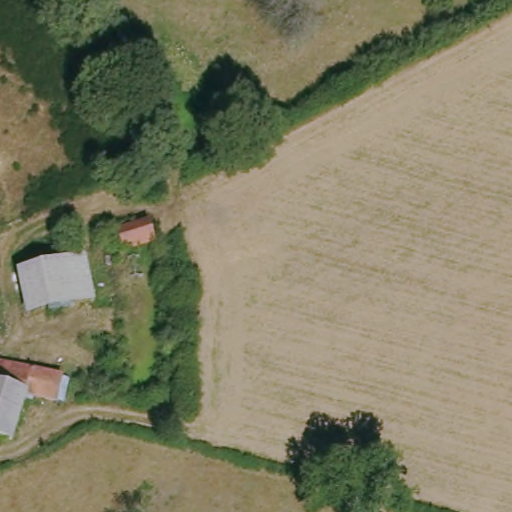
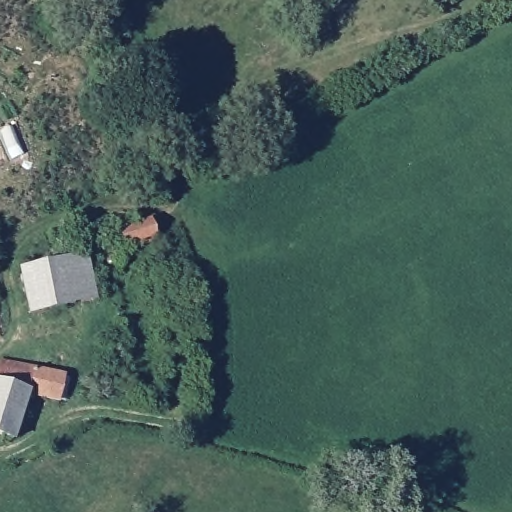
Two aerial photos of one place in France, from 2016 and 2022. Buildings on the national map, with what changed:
unchanged [(152,240),(139,241),(138,245),(115,245),(114,227),(147,219),(152,240)]
unchanged [(88,302),(27,314),(19,269),(80,257),(88,302)]
unchanged [(58,369),(51,397),(17,391),(6,434),(0,433),(0,360),(58,369)]

